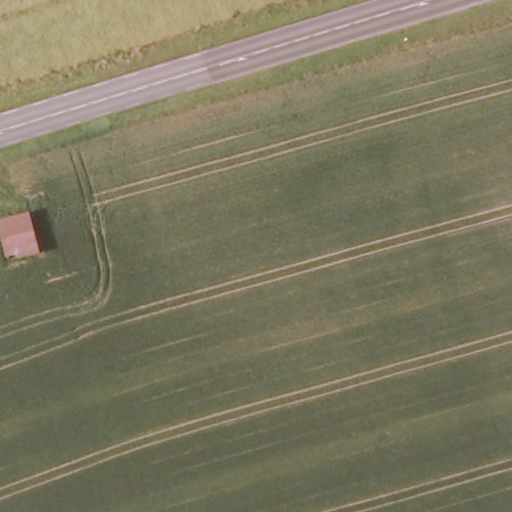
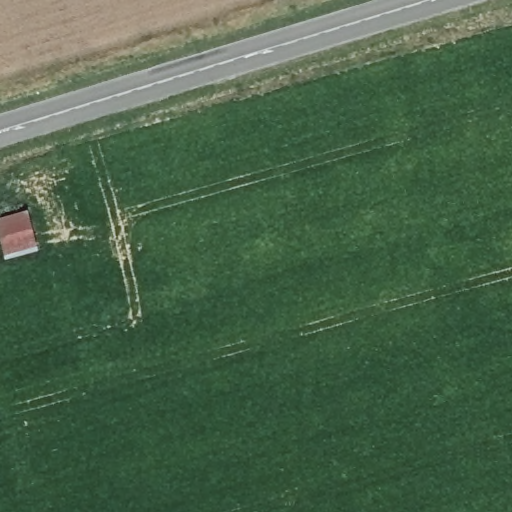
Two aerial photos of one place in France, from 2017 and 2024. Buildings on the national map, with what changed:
unchanged [(7,256),(0,220),(0,218),(31,212),(39,252),(7,256)]

